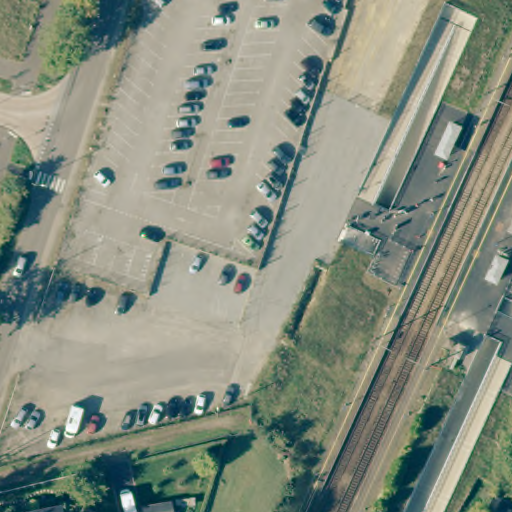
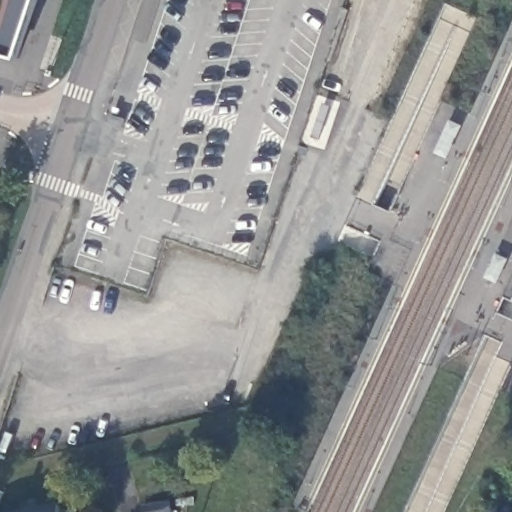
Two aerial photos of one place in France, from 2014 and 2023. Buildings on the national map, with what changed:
new [(39,0),(20,60),(0,54),(0,0),(39,0)]
unchanged [(447,130),(460,136),(447,164),(435,158),(447,130)]
demolished [(512,224),(512,232),(509,231),(512,224)]
unchanged [(512,251),(512,253),(497,286),(487,282),(503,247),(512,251)]
demolished [(500,330),(512,335),(501,362),(488,357),(500,330)]
unchanged [(504,499),(512,503),(512,512),(498,512),(504,499)]
unchanged [(154,506),(181,502),(182,512),(154,512),(154,506)]
unchanged [(60,512),(36,512),(60,507),(60,512)]

